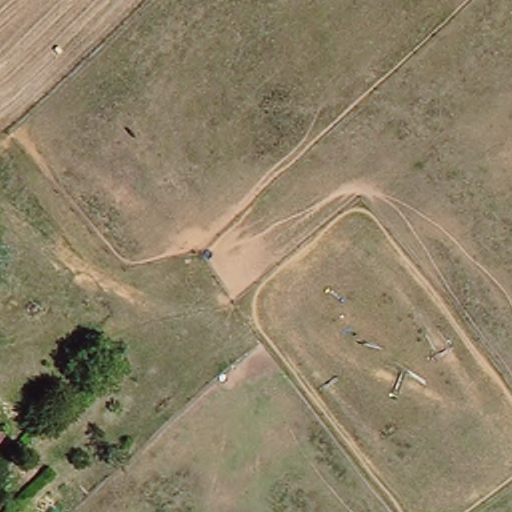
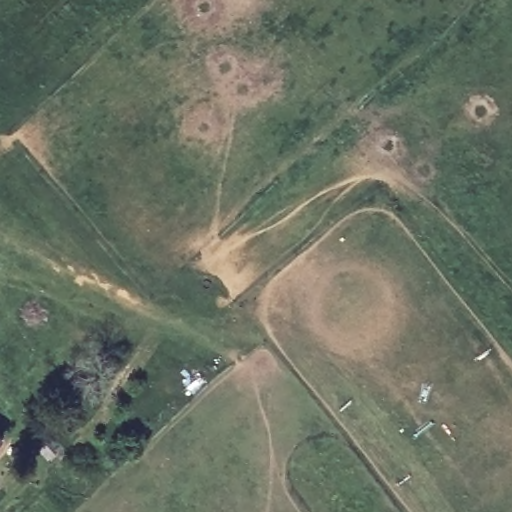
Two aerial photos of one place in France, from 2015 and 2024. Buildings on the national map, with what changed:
unchanged [(7,413),(3,421),(17,433),(7,446),(0,454),(0,407),(7,413)]

